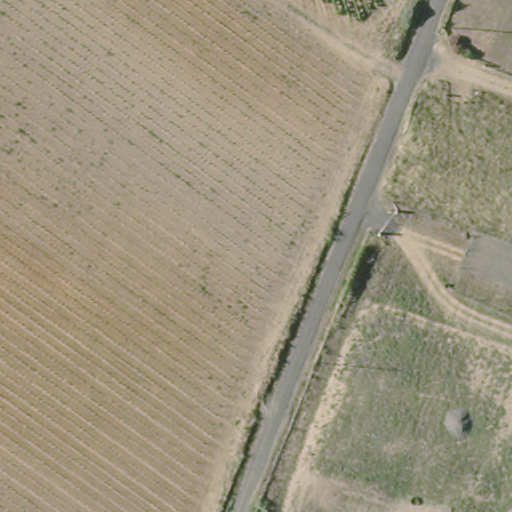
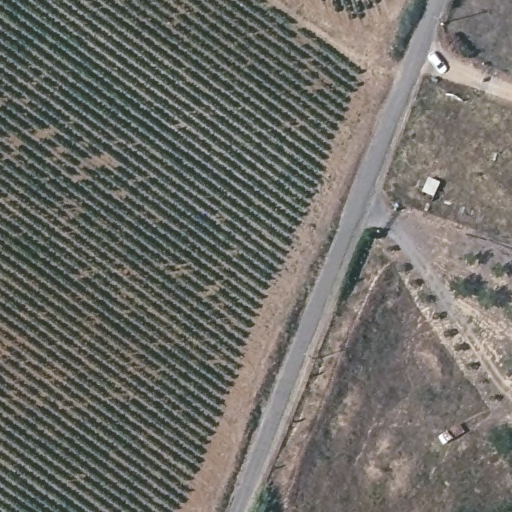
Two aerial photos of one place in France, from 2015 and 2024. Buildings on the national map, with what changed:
[]

